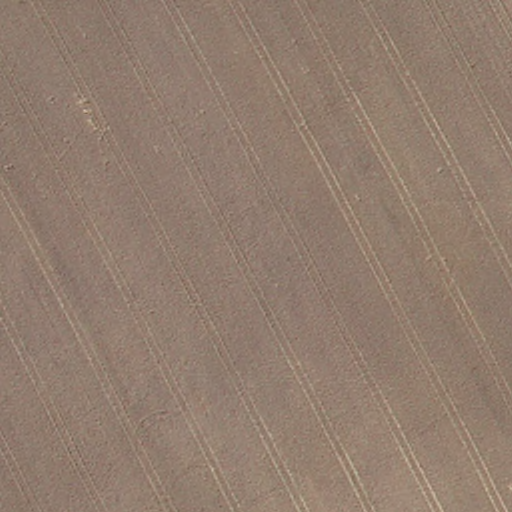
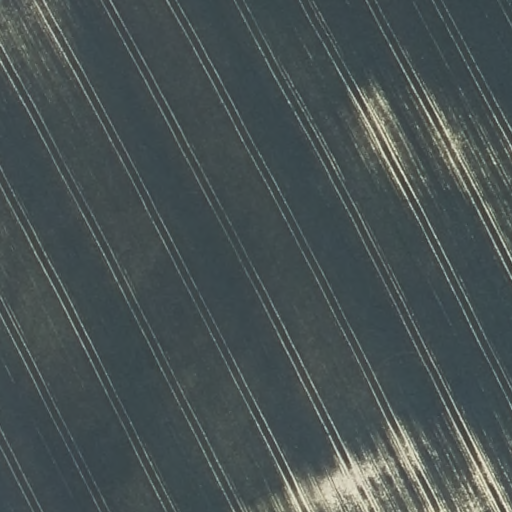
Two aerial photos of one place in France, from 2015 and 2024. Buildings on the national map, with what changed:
[]

